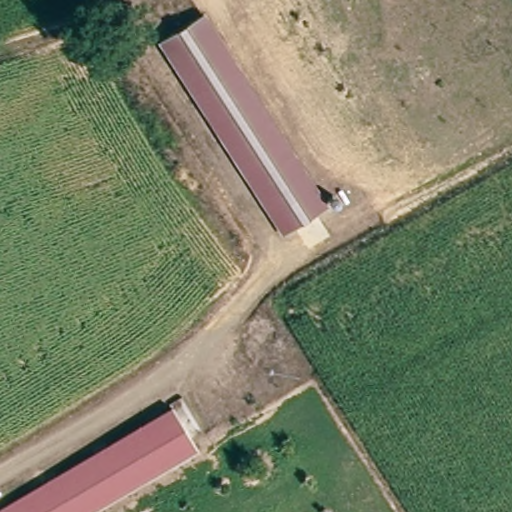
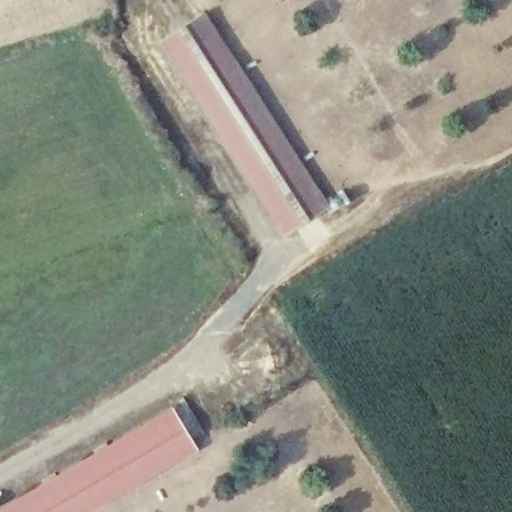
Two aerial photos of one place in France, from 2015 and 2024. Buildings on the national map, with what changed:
unchanged [(238,65),(322,219),(282,240),(198,88),(170,35),(210,14),(238,65)]
unchanged [(93,512),(0,512),(0,509),(170,407),(198,449),(93,512)]

